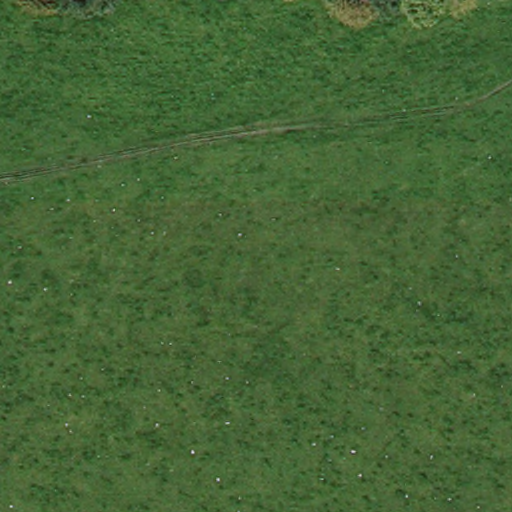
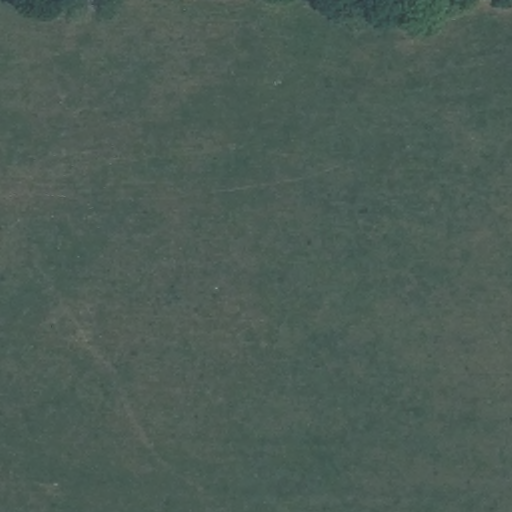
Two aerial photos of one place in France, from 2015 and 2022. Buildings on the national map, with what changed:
[]

